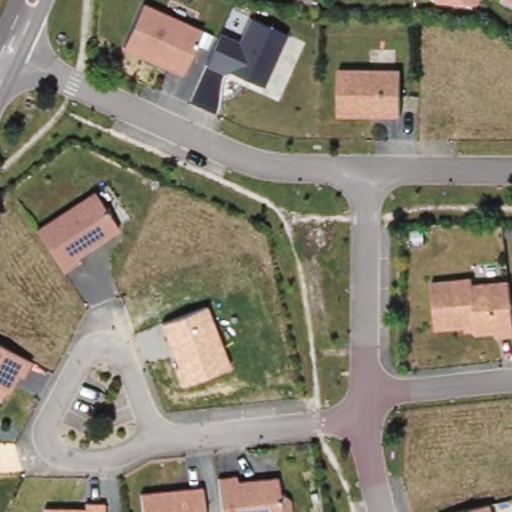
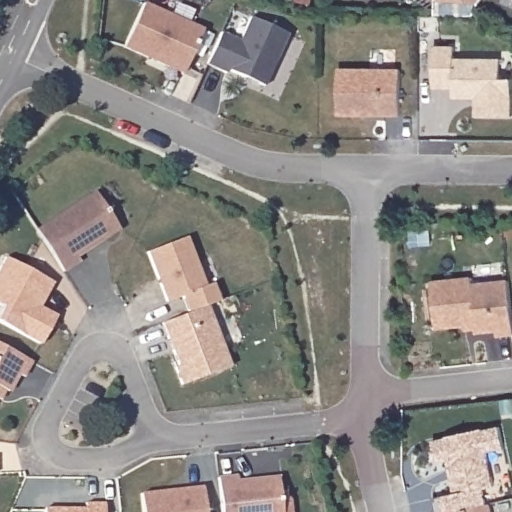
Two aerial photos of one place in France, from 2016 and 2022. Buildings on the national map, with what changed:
unchanged [(437,3),(436,0),(478,0),(473,7),(437,3)]
unchanged [(202,30),(181,77),(122,51),(142,5),(202,30)]
unchanged [(230,70),(228,75),(206,65),(221,32),(240,40),(250,17),(287,34),(263,86),(230,70)]
new [(455,47),(455,59),(501,60),(501,80),(512,80),(512,117),(476,116),(476,99),(453,99),(453,89),(433,89),(433,46),(455,47)]
unchanged [(400,71),(399,120),(338,119),(340,72),(400,71)]
unchanged [(95,195),(120,235),(76,260),(80,265),(65,275),(37,231),(95,195)]
new [(205,285),(215,282),(221,301),(208,307),(189,315),(182,295),(166,302),(146,252),(186,236),(205,285)]
new [(56,315),(40,344),(0,322),(0,313),(4,307),(0,305),(0,267),(5,257),(52,282),(44,298),(40,306),(56,315)]
unchanged [(472,285),(508,283),(512,327),(512,340),(498,340),(497,335),(465,335),(465,330),(435,332),(431,284),(472,277),(472,285)]
unchanged [(175,366),(178,365),(164,324),(208,307),(230,367),(180,385),(175,366)]
unchanged [(26,362),(1,403),(0,403),(0,348),(26,362)]
new [(466,512),(436,512),(434,498),(455,493),(447,459),(437,462),(432,441),(500,425),(505,448),(488,451),(495,486),(485,488),(488,507),(466,512)]
unchanged [(235,478),(236,482),(276,479),(278,498),(291,500),(292,512),(223,512),(219,481),(235,478)]
unchanged [(202,490),(204,512),(143,512),(142,495),(202,490)]
unchanged [(86,510),(86,505),(105,505),(104,512),(44,512),(44,510),(86,510)]
unchanged [(492,512),(466,512),(491,506),(492,512)]

